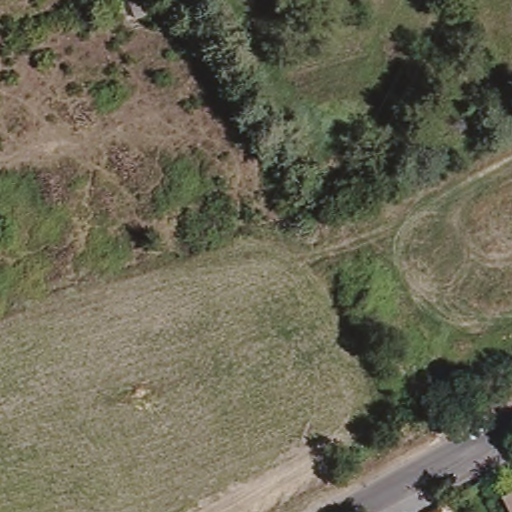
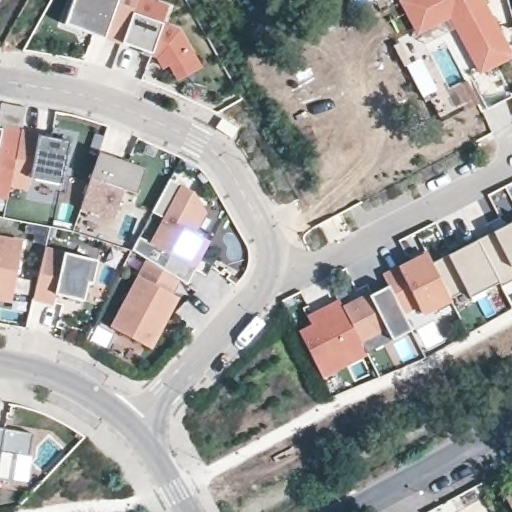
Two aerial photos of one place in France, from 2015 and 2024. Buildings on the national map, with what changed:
new [(104,40),(63,25),(72,0),(134,0),(118,45),(104,40)]
new [(149,58),(118,45),(134,0),(140,0),(168,9),(149,58)]
demolished [(129,4),(139,0),(151,0),(154,11),(133,18),(129,4)]
new [(449,18),(417,34),(399,0),(484,0),(512,52),(512,58),(479,73),(449,18)]
new [(163,23),(179,28),(203,68),(177,82),(168,66),(163,69),(158,61),(149,58),(163,23)]
new [(10,184),(8,197),(0,195),(0,129),(21,133),(10,184)]
new [(21,133),(21,131),(69,140),(61,184),(30,178),(29,188),(10,184),(21,133)]
new [(99,153),(146,169),(136,194),(124,190),(114,218),(81,207),(99,153)]
new [(196,192),(206,213),(196,234),(209,241),(188,284),(179,278),(178,279),(142,262),(146,259),(132,252),(138,238),(150,244),(163,219),(151,214),(169,181),(196,192)]
new [(499,287),(499,282),(469,298),(466,290),(446,300),(428,265),(512,222),(512,280),(499,287)]
unchanged [(0,303),(0,237),(16,239),(8,304),(0,303)]
new [(91,290),(81,287),(78,299),(56,294),(51,305),(28,299),(42,247),(65,253),(94,260),(91,290)]
new [(448,304),(406,324),(410,331),(383,345),(317,377),(295,332),(307,326),(303,316),(335,299),(340,308),(366,297),(386,289),(381,275),(397,268),(422,254),(448,304)]
new [(178,279),(168,297),(174,301),(149,348),(108,327),(142,262),(178,279)]
new [(15,453),(11,481),(0,479),(0,428),(4,429),(30,434),(29,454),(15,453)]
unchanged [(506,501),(512,497),(512,511),(506,501)]

